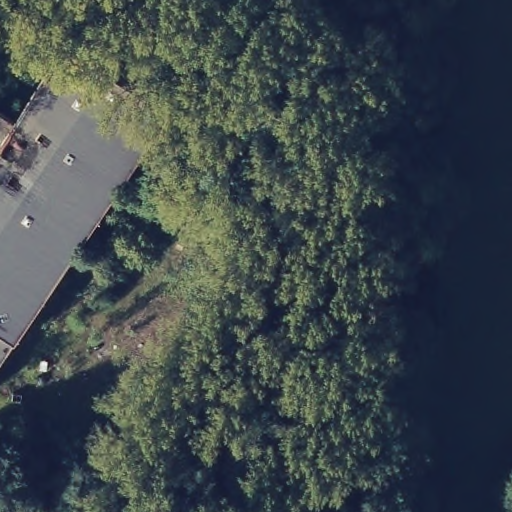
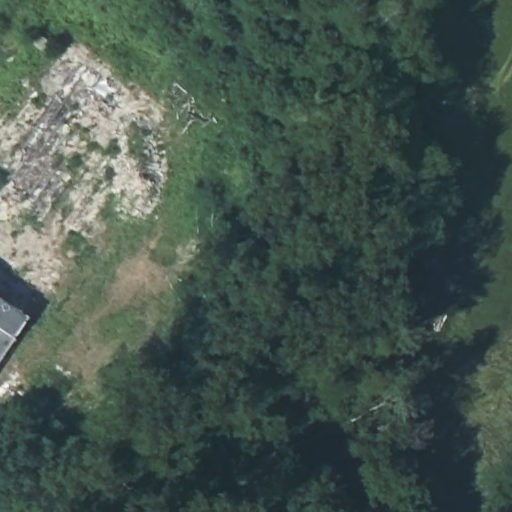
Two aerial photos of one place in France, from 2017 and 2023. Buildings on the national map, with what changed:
demolished [(16,117),(71,38),(171,107),(0,357),(0,107),(16,117)]
new [(28,318),(15,337),(0,360),(0,297),(28,318)]

